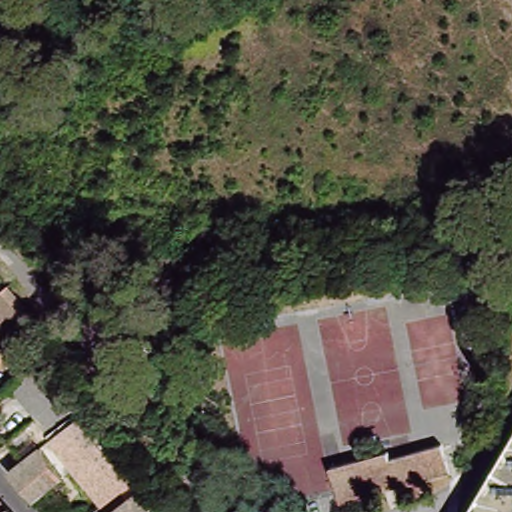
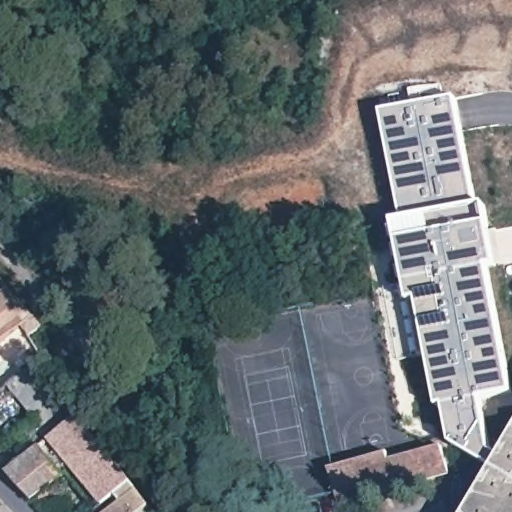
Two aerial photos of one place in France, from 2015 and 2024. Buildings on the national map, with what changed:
new [(481,399),(490,445),(479,462),(449,444),(443,407),(437,409),(415,301),(408,303),(392,223),(403,220),(382,112),(455,99),(475,208),(485,205),(496,265),(488,267),(511,393),(481,399)]
unchanged [(12,285),(40,319),(0,348),(0,294),(12,285)]
unchanged [(2,363),(0,364),(0,360),(2,363)]
unchanged [(10,387),(41,360),(80,405),(49,432),(10,387)]
unchanged [(465,484),(493,440),(512,409),(512,512),(448,512),(460,492),(465,484)]
unchanged [(82,418),(134,484),(104,507),(52,441),(82,418)]
unchanged [(341,456),(356,453),(388,445),(389,451),(442,438),(450,471),(366,491),(348,495),(343,496),(334,498),(330,479),(325,460),(341,456)]
unchanged [(43,447),(68,476),(36,503),(12,473),(43,447)]
unchanged [(157,510),(154,512),(112,512),(143,490),(157,510)]
unchanged [(97,510),(95,512),(64,512),(82,494),(97,510)]
unchanged [(9,507),(3,512),(0,512),(0,497),(9,507)]
unchanged [(14,512),(3,512),(9,507),(14,512)]

